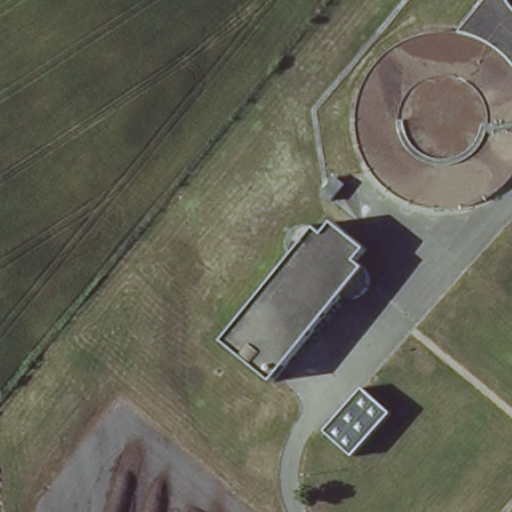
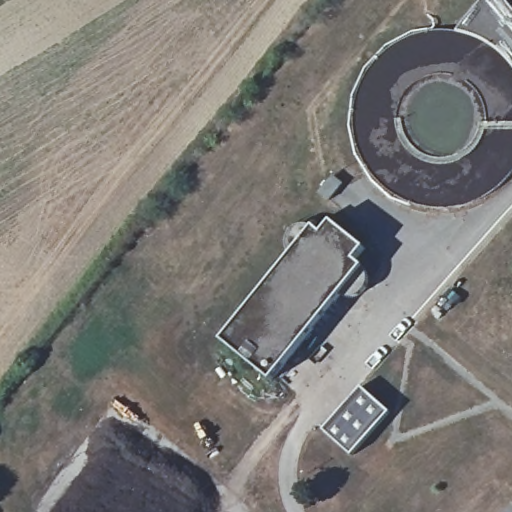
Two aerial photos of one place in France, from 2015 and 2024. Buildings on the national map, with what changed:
unchanged [(315,228),(319,231),(330,220),(366,247),(357,260),(365,268),(272,379),(222,338),(315,228)]
unchanged [(361,388),(389,413),(352,458),(322,431),(361,388)]

